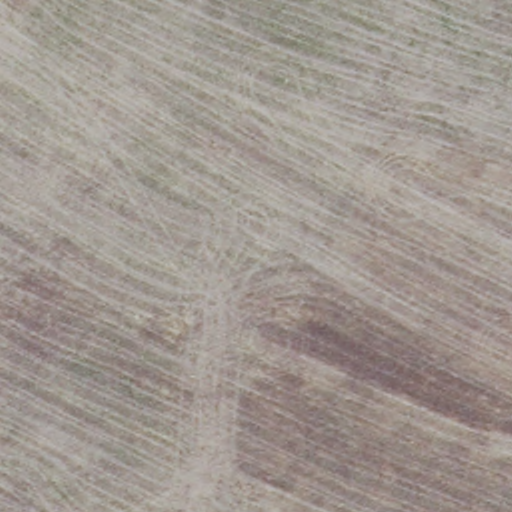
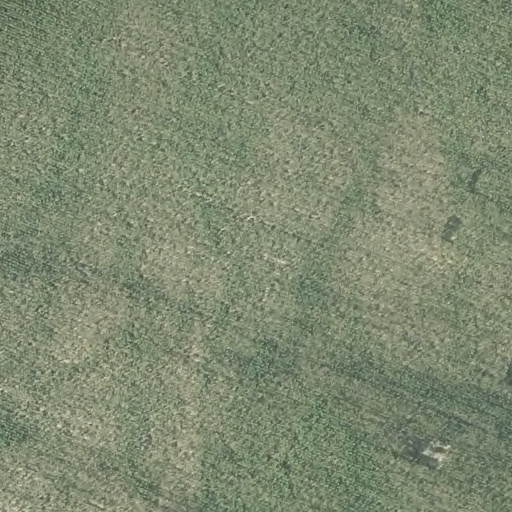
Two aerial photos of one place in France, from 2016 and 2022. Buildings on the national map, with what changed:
[]

